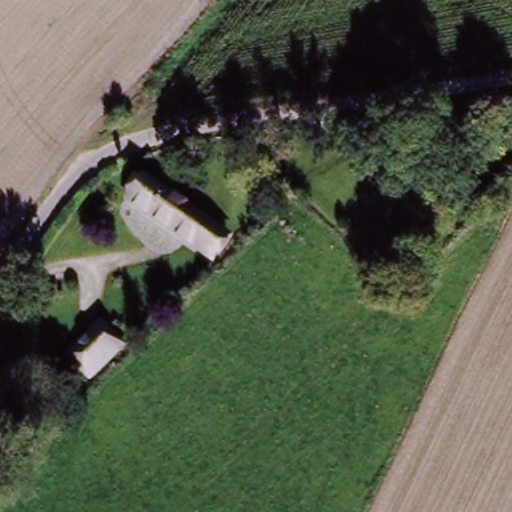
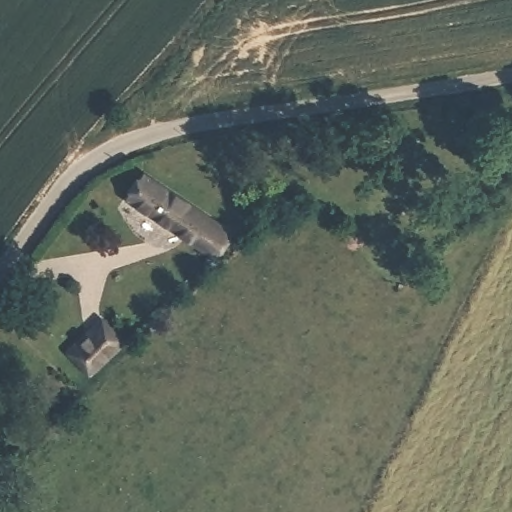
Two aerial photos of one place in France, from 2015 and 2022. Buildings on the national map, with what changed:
unchanged [(232,241),(215,264),(121,199),(136,176),(232,241)]
unchanged [(125,347),(91,378),(71,357),(105,326),(125,347)]

